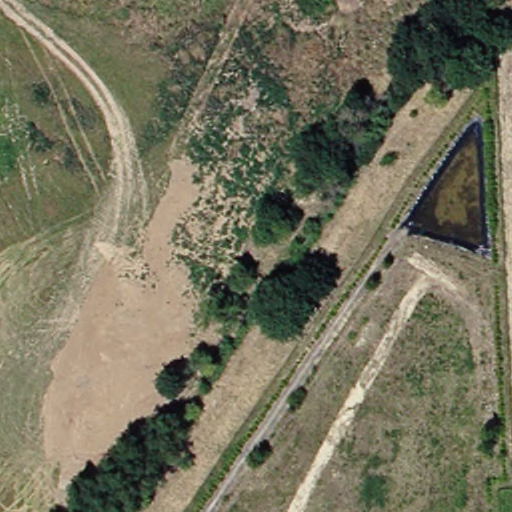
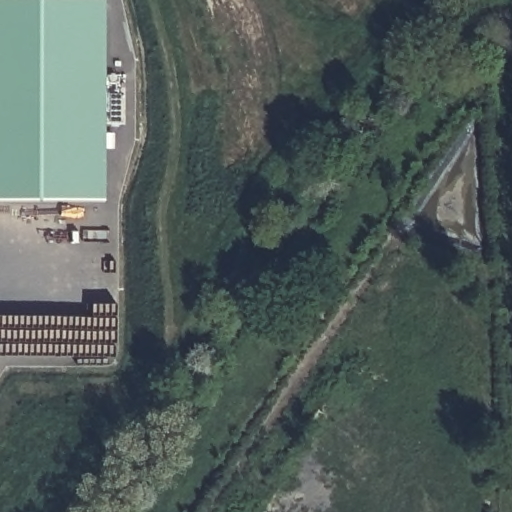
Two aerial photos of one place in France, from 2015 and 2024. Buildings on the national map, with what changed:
new [(106,202),(0,201),(0,0),(106,0),(106,202)]

